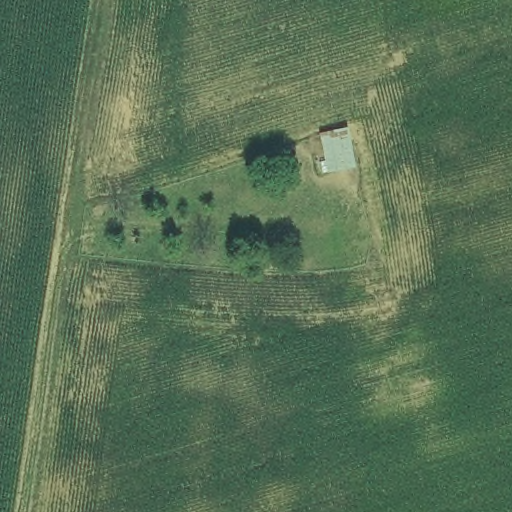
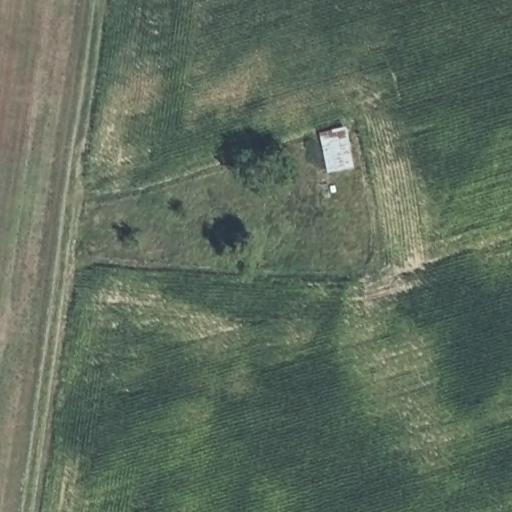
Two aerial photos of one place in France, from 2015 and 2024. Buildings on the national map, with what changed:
unchanged [(359,169),(332,175),(325,134),(352,128),(359,169)]

